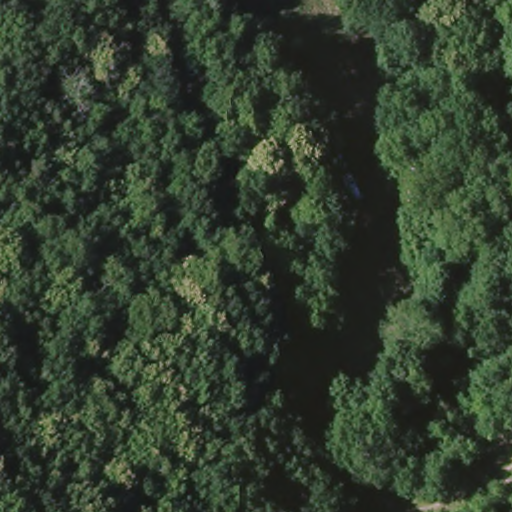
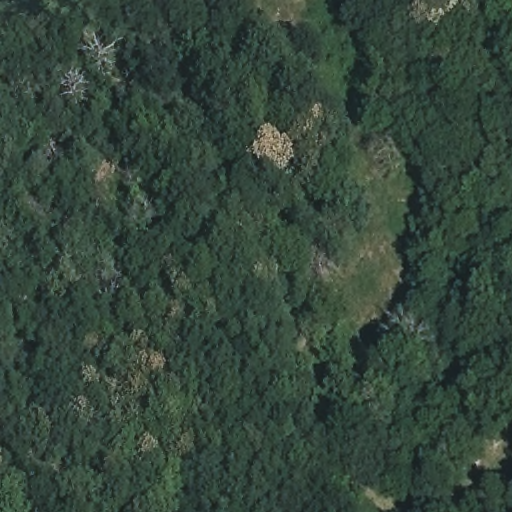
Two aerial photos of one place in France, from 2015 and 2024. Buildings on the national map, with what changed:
[]

